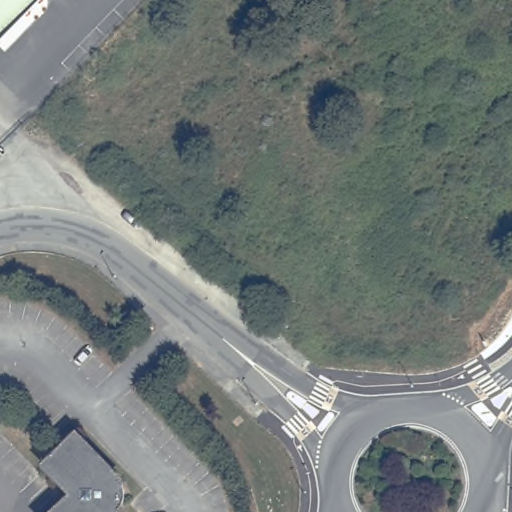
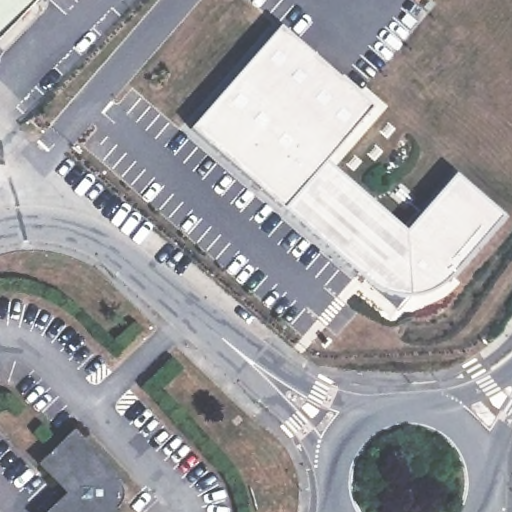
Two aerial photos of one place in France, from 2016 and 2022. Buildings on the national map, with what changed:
unchanged [(0,0),(35,0),(0,36),(0,0)]
new [(278,27),(371,108),(325,162),(405,230),(454,174),(501,218),(438,287),(428,293),(411,298),(397,298),(381,293),(370,287),(279,207),(189,129),(278,27)]
unchanged [(49,458),(68,439),(78,429),(120,471),(129,480),(132,488),(130,501),(126,508),(121,512),(55,512),(79,488),(49,458)]

